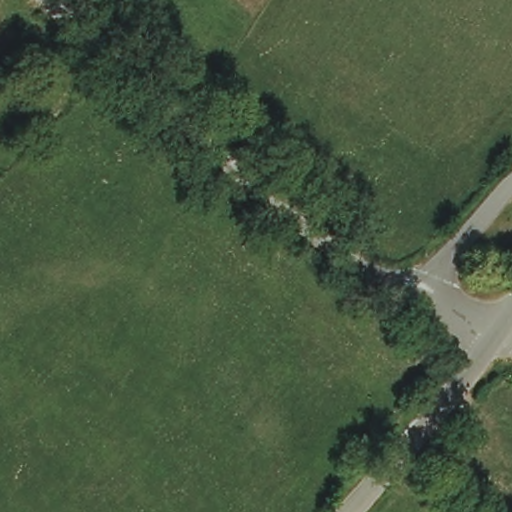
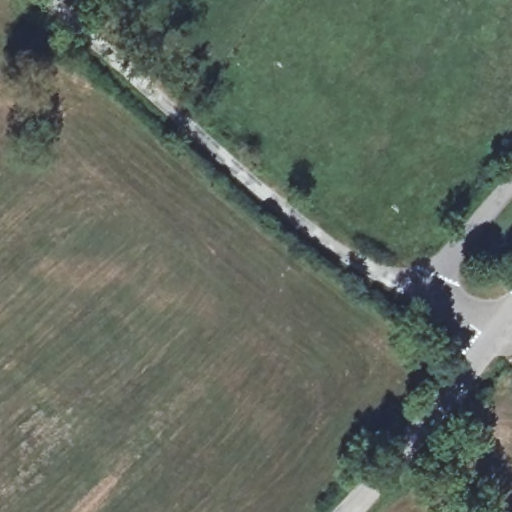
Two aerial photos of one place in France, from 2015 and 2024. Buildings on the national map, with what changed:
unchanged [(28,5),(0,34),(0,0),(22,0),(28,5)]

